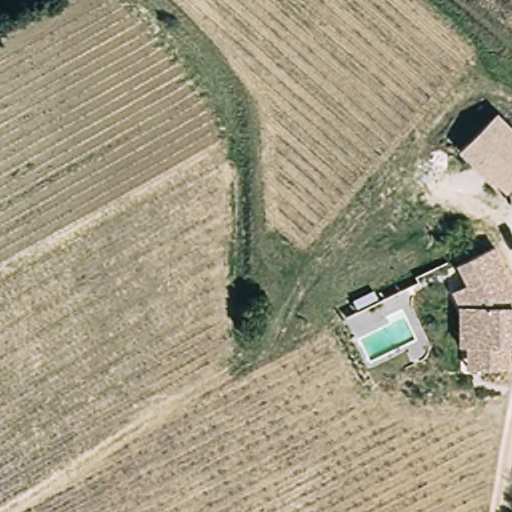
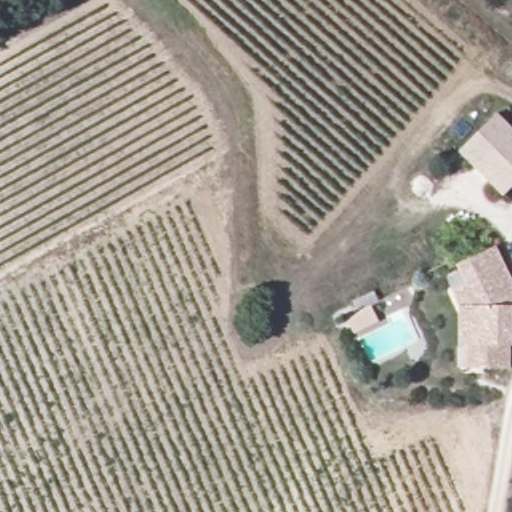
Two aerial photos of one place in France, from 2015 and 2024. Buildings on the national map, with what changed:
unchanged [(512,179),(501,189),(459,144),(496,109),(512,125),(512,179)]
unchanged [(460,344),(461,306),(454,290),(468,283),(460,263),(496,247),(512,282),(512,329),(511,346),(507,346),(505,369),(480,367),(464,367),(465,344),(460,344)]

